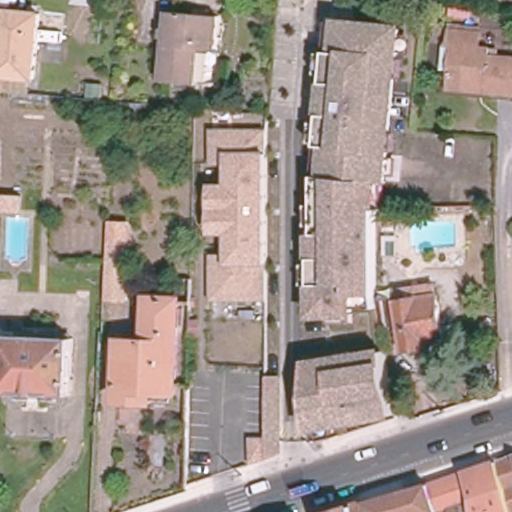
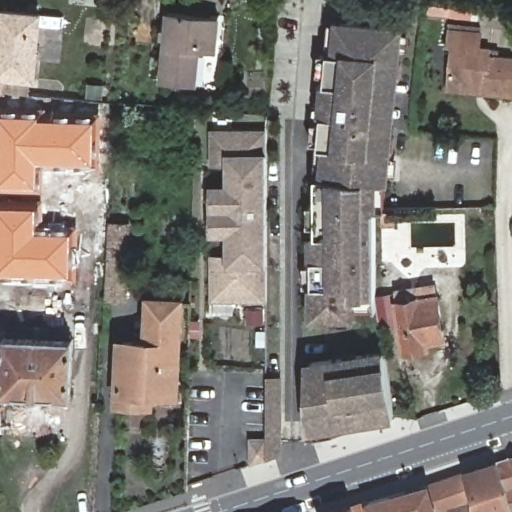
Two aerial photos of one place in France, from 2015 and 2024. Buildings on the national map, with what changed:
unchanged [(159,7),(210,12),(206,47),(213,47),(209,82),(153,77),(159,7)]
unchanged [(29,79),(0,76),(0,11),(34,14),(29,79)]
unchanged [(388,183),(385,183),(385,207),(373,209),(373,292),(358,296),(355,316),(308,319),(307,233),(314,234),(314,175),(321,174),(323,148),(317,147),(325,53),(331,54),(332,17),(403,23),(388,183)]
unchanged [(512,58),(512,95),(483,93),(484,86),(445,83),(449,46),(445,45),(446,30),(477,33),(476,48),(487,49),(486,56),(512,58)]
unchanged [(95,101),(87,100),(89,83),(105,85),(103,102),(95,101)]
new [(0,107),(102,112),(99,167),(44,166),(44,191),(0,189),(0,107)]
unchanged [(209,301),(209,254),(225,255),(225,235),(206,234),(206,184),(224,183),(225,167),(208,165),(208,130),(267,129),(267,154),(271,154),(271,265),(265,265),(264,298),(209,301)]
new [(42,223),(78,224),(77,280),(0,277),(0,198),(43,200),(42,223)]
unchanged [(386,218),(396,218),(397,225),(386,226),(386,218)]
unchanged [(109,299),(112,224),(130,224),(127,300),(109,299)]
unchanged [(396,231),(397,249),(387,249),(387,231),(396,231)]
unchanged [(419,345),(420,352),(400,356),(391,296),(431,289),(441,342),(419,345)]
unchanged [(151,384),(150,395),(122,393),(125,339),(156,340),(157,330),(152,330),(154,296),(179,297),(176,385),(151,384)]
unchanged [(68,396),(0,392),(0,330),(1,331),(1,335),(70,338),(68,396)]
unchanged [(383,348),(392,417),(304,434),(303,361),(383,348)]
unchanged [(279,378),(280,455),(264,456),(264,377),(279,378)]
unchanged [(509,512),(494,462),(512,456),(512,512),(509,512)]
unchanged [(460,472),(494,462),(509,512),(470,512),(469,499),(460,472)]
unchanged [(460,472),(469,499),(470,512),(433,512),(424,483),(460,472)]
unchanged [(424,483),(433,512),(359,512),(357,503),(424,483)]
unchanged [(357,503),(359,512),(327,512),(350,505),(357,503)]

